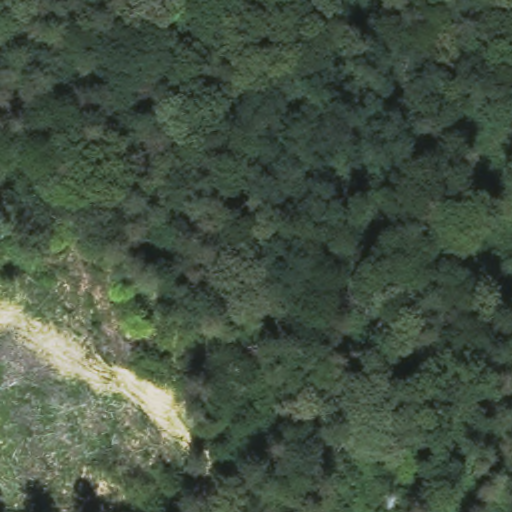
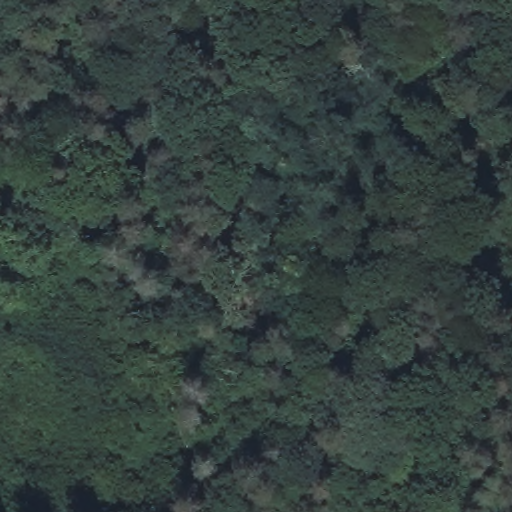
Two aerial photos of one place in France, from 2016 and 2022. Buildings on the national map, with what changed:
[]

